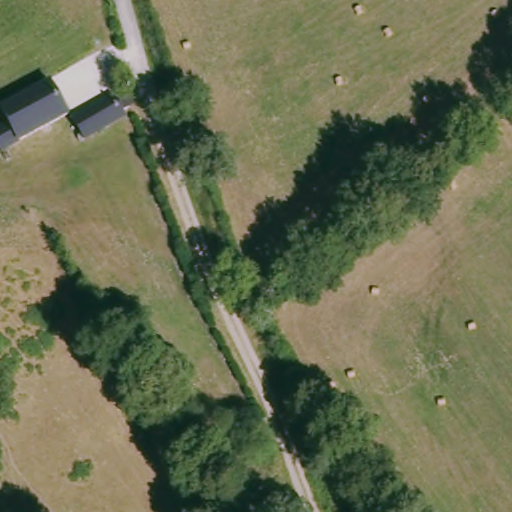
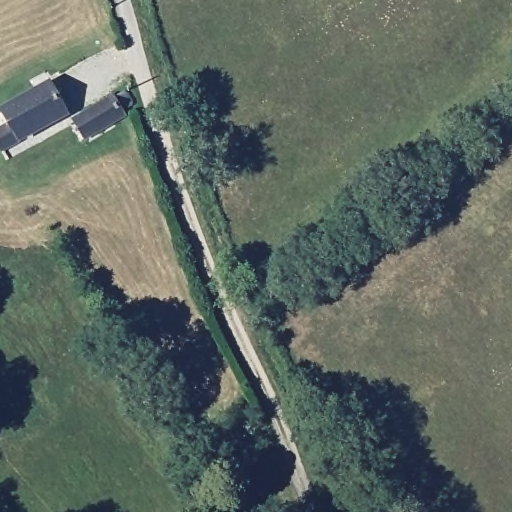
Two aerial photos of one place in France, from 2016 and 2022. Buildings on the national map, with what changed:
unchanged [(3,155),(0,150),(0,131),(9,125),(0,113),(0,112),(49,84),(67,115),(3,155)]
unchanged [(77,120),(113,97),(119,99),(123,96),(128,97),(131,100),(131,104),(130,109),(124,113),(125,118),(87,141),(77,120)]

